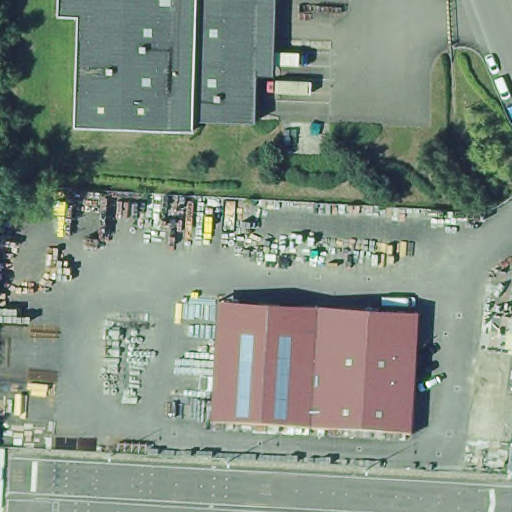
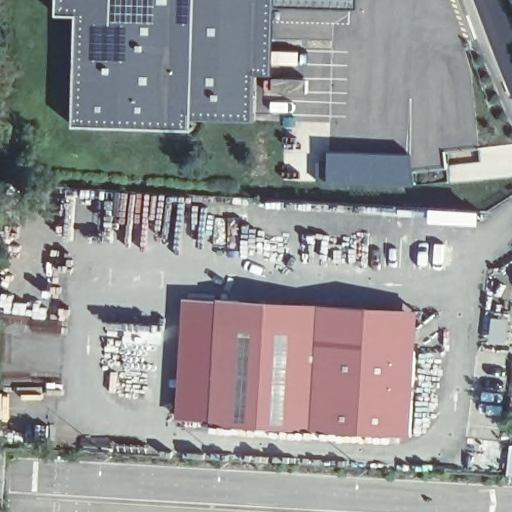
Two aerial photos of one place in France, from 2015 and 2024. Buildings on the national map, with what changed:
unchanged [(253,123),(187,121),(186,132),(71,128),(74,18),(55,17),(56,0),(258,0),(253,123)]
new [(274,5),(269,75),(256,77),(258,0),(274,0),(274,5)]
new [(359,9),(274,5),(274,0),(359,0),(359,9)]
new [(412,155),(413,187),(324,183),(326,151),(412,155)]
new [(174,422),(181,298),(216,298),(216,323),(210,423),(174,422)]
unchanged [(216,298),(416,309),(414,348),(399,333),(216,323),(216,298)]
unchanged [(399,333),(414,348),(409,434),(210,423),(216,323),(399,333)]

